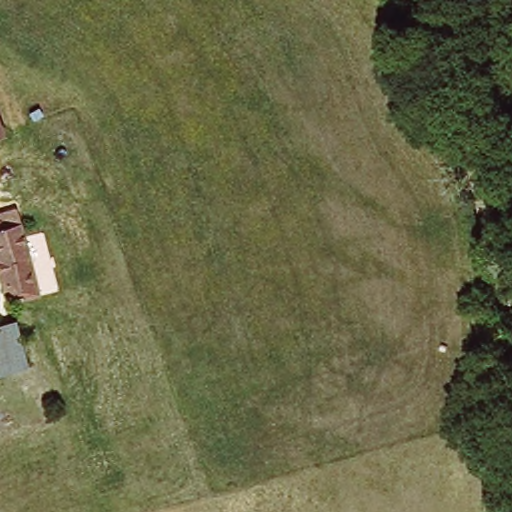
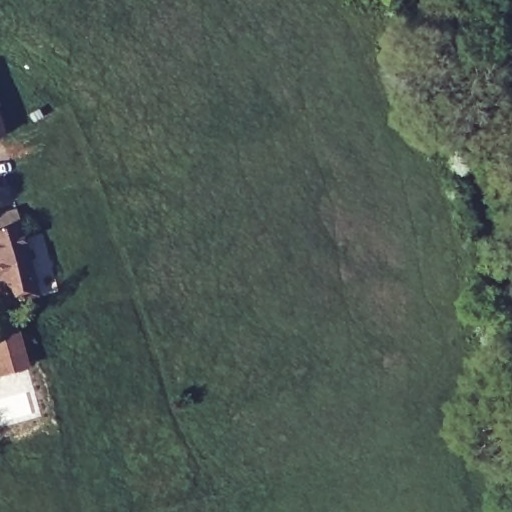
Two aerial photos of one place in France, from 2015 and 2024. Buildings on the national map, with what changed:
unchanged [(0,140),(0,122),(6,138),(0,140)]
unchanged [(7,310),(0,287),(0,221),(17,216),(41,301),(7,310)]
unchanged [(18,323),(31,365),(0,375),(0,328),(18,323)]

